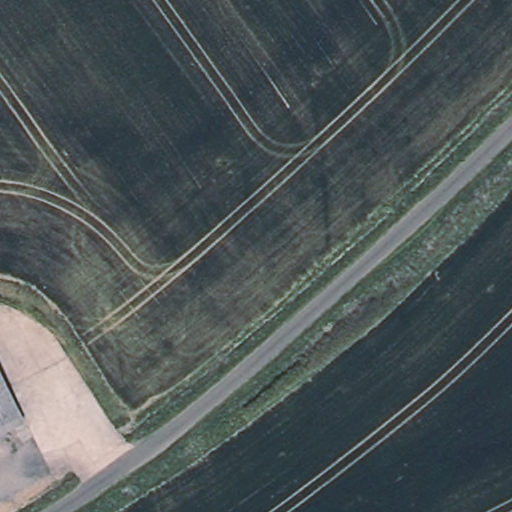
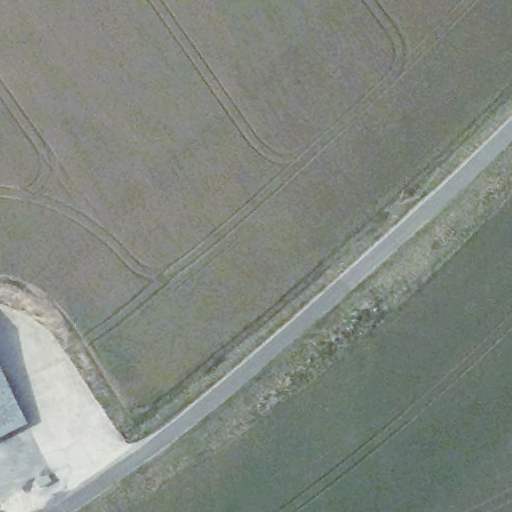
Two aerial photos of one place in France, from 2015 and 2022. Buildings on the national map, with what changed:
unchanged [(0,427),(0,379),(20,417),(0,427)]

